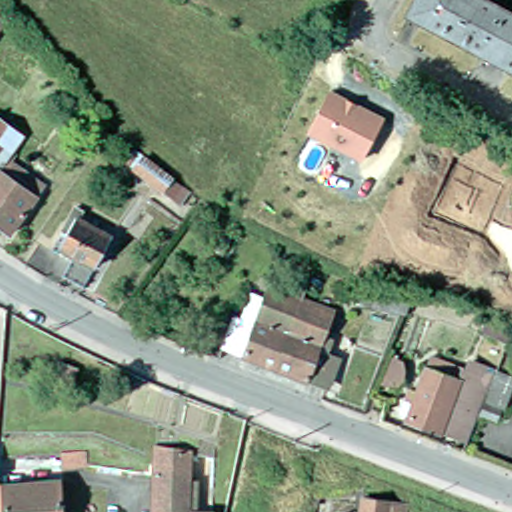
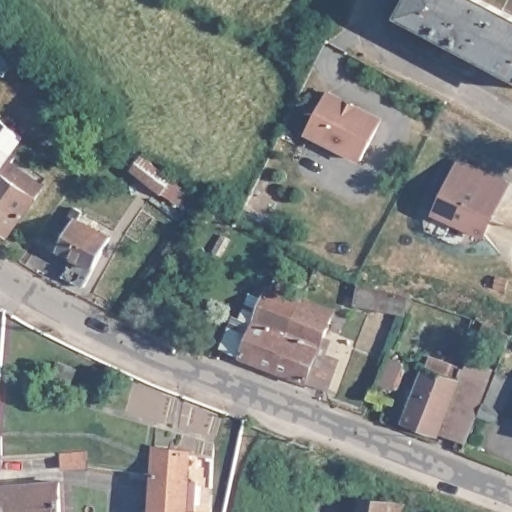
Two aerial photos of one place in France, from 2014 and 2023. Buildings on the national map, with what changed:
unchanged [(405,6),(409,0),(495,0),(512,9),(512,64),(405,6)]
unchanged [(332,95),(385,122),(364,163),(310,135),(332,95)]
unchanged [(1,227),(0,227),(0,120),(15,130),(4,146),(10,150),(4,157),(35,180),(1,227)]
unchanged [(174,200),(165,193),(140,173),(132,166),(142,155),(150,161),(175,180),(184,187),(174,200)]
new [(511,181),(486,238),(433,215),(459,157),(511,181)]
unchanged [(70,241),(54,232),(71,202),(105,221),(77,270),(59,261),(70,241)]
unchanged [(225,233),(232,238),(223,252),(215,246),(225,233)]
unchanged [(314,381),(281,368),(237,351),(230,348),(242,316),(249,318),(255,302),(259,293),(271,297),(275,287),(280,290),(285,277),(312,287),(307,300),(340,312),(324,355),(346,363),(336,390),(314,381)]
unchanged [(356,306),(360,288),(414,300),(407,318),(356,306)]
unchanged [(428,433),(392,420),(399,402),(392,400),(397,387),(404,390),(413,366),(416,367),(420,355),(449,366),(444,377),(449,380),(452,371),(479,381),(488,359),(506,366),(489,410),(484,422),(465,415),(457,435),(455,443),(428,433)]
unchanged [(56,376),(61,362),(80,369),(75,383),(56,376)]
unchanged [(148,472),(149,449),(182,450),(180,479),(189,480),(187,512),(146,512),(148,472)]
unchanged [(65,457),(91,458),(90,472),(65,471),(65,457)]
unchanged [(57,480),(59,512),(0,512),(0,483),(2,485),(57,480)]
unchanged [(360,492),(388,496),(388,495),(405,497),(403,512),(358,512),(360,492)]

